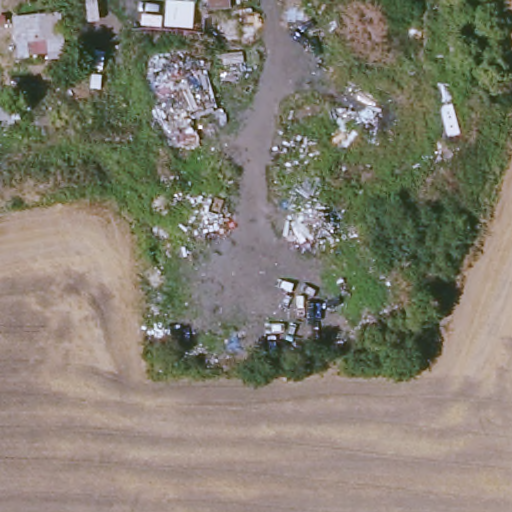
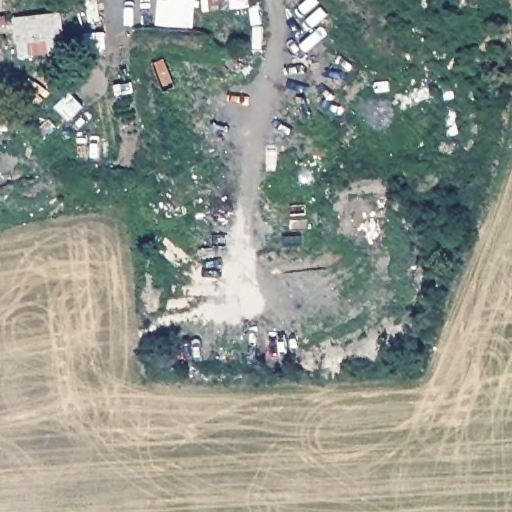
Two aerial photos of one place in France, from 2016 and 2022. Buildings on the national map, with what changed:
unchanged [(231,5),(206,5),(205,0),(231,0),(231,5)]
unchanged [(59,11),(62,36),(63,58),(45,58),(44,53),(28,54),(26,43),(13,43),(9,14),(59,11)]

